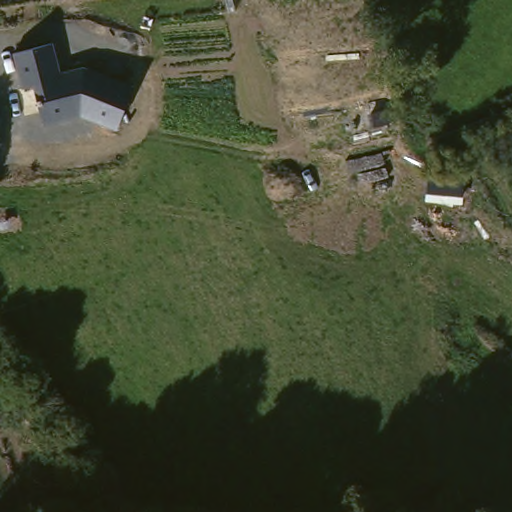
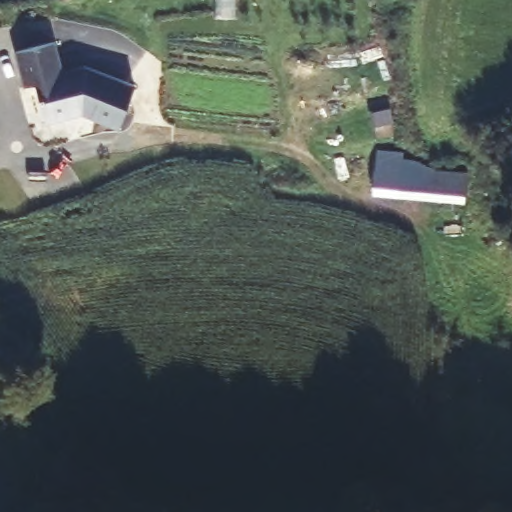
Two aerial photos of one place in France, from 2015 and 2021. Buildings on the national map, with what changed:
unchanged [(35,86),(23,89),(14,53),(54,42),(63,75),(89,69),(136,86),(118,130),(83,116),(44,126),(35,86)]
new [(399,158),(438,170),(468,174),(464,205),(396,198),(399,158)]

